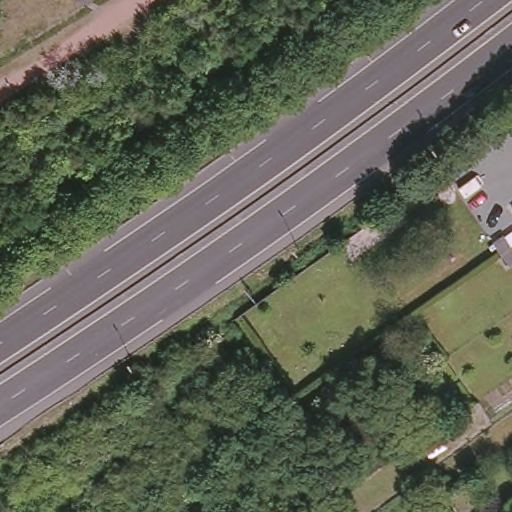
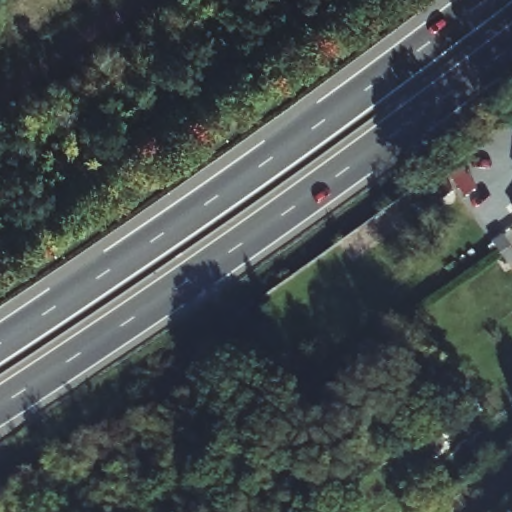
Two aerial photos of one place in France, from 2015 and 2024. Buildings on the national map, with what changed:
unchanged [(507,264),(499,252),(492,242),(502,235),(509,246),(512,251),(512,260),(507,264)]
unchanged [(512,488),(512,507),(503,494),(512,488)]

